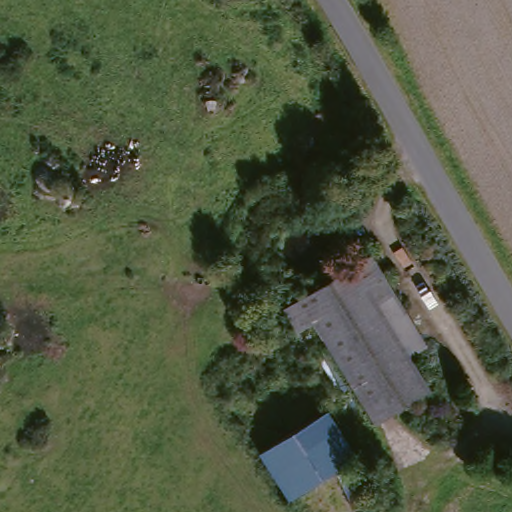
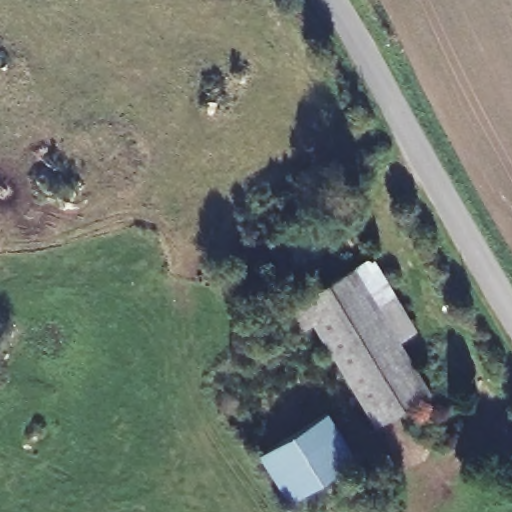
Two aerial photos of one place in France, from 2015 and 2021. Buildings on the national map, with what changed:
unchanged [(356,433),(286,300),(375,252),(389,277),(397,293),(379,303),(429,395),(356,433)]
unchanged [(329,411),(355,460),(286,497),(254,454),(329,411)]

